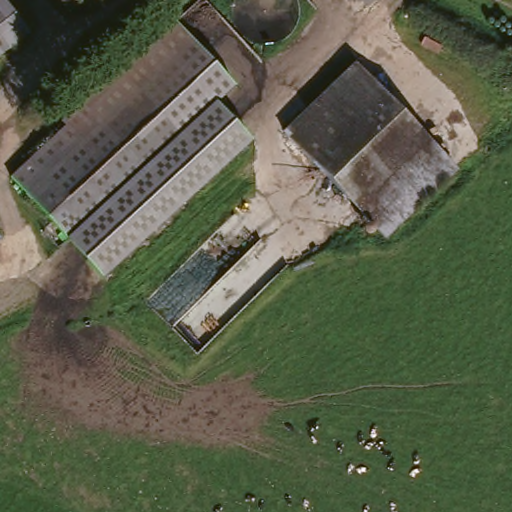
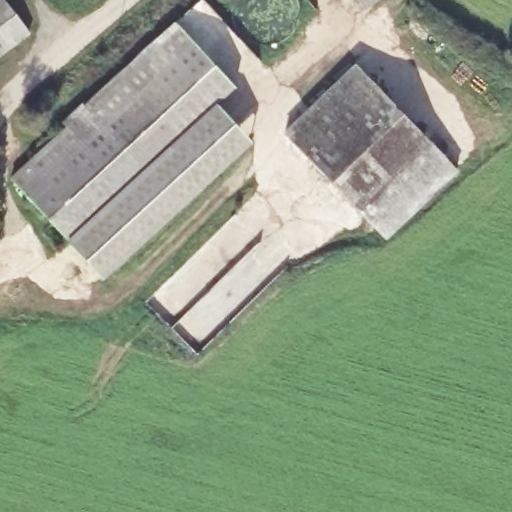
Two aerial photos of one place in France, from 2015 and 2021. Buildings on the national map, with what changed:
unchanged [(362,10),(353,0),(372,0),(362,10)]
unchanged [(0,54),(0,11),(21,35),(0,54)]
unchanged [(178,18),(240,83),(221,102),(257,141),(100,280),(79,265),(102,244),(86,226),(179,141),(114,77),(178,18)]
unchanged [(354,71),(450,179),(376,245),(281,137),(354,71)]
unchanged [(179,141),(86,226),(102,244),(79,265),(3,182),(114,77),(179,141)]

